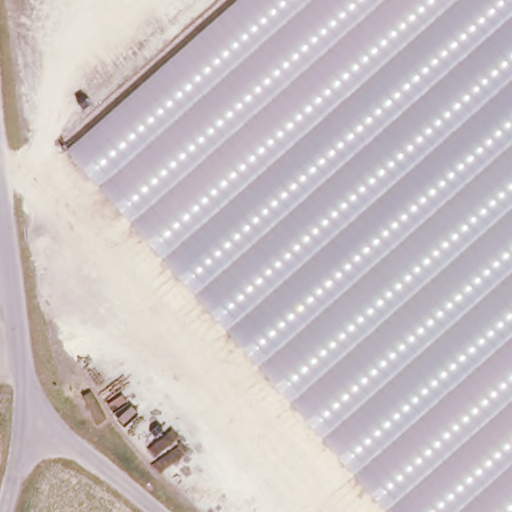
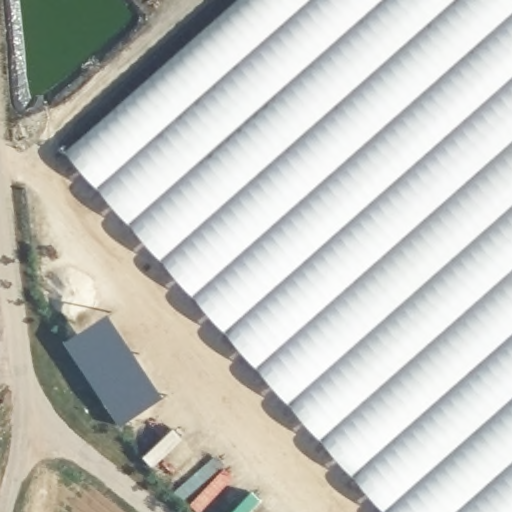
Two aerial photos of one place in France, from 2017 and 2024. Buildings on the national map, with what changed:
unchanged [(64,146),(230,0),(512,0),(512,512),(387,512),(64,146)]
new [(124,425),(68,341),(113,312),(169,396),(124,425)]

